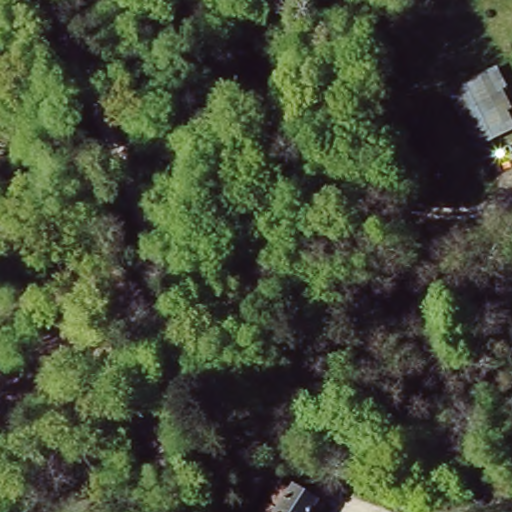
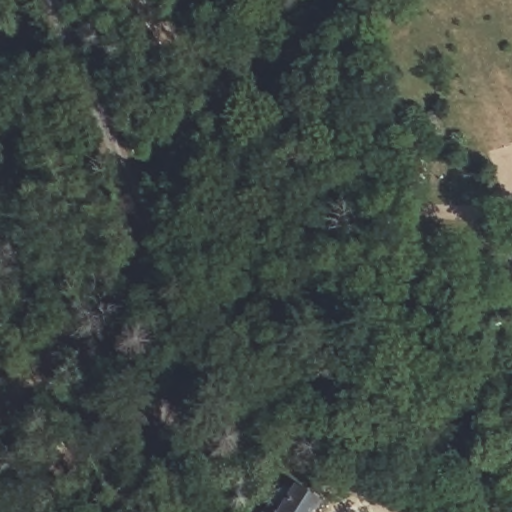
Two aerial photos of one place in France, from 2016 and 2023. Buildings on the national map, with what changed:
demolished [(500,65),(512,88),(506,90),(512,105),(512,106),(508,109),(512,117),(512,132),(475,150),(447,92),(500,65)]
unchanged [(325,510),(323,512),(265,512),(282,484),(325,510)]

